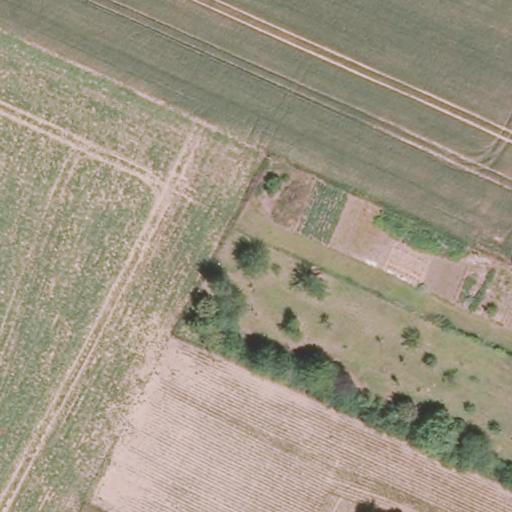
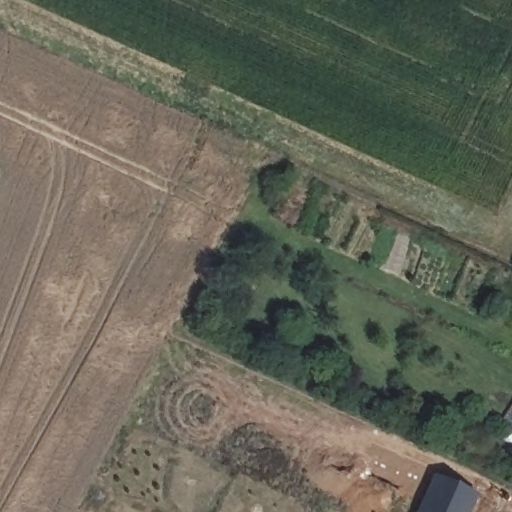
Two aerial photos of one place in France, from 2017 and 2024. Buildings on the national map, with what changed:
new [(477,494),(470,512),(417,512),(433,474),(477,494)]

